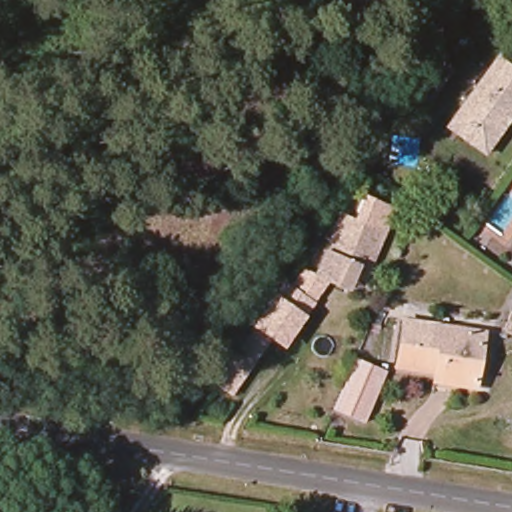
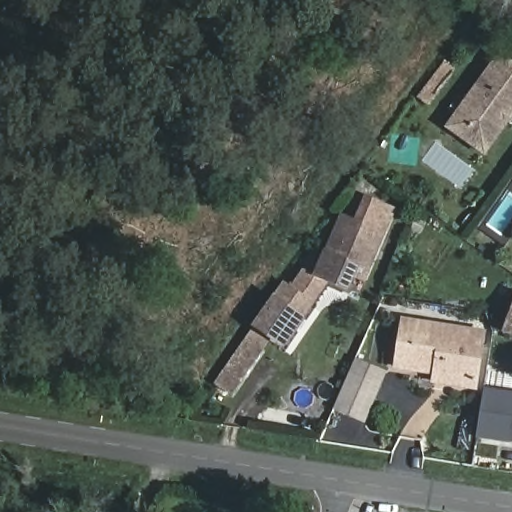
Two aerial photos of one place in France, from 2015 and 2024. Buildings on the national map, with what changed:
unchanged [(450,122),(493,63),(512,77),(512,105),(483,145),(450,122)]
unchanged [(409,98),(420,84),(429,91),(419,105),(409,98)]
unchanged [(443,132),(450,122),(483,145),(512,105),(512,116),(480,160),(443,132)]
unchanged [(393,207),(380,234),(355,223),(365,194),(393,207)]
unchanged [(380,234),(364,272),(350,265),(340,286),(330,282),(312,275),(338,216),(380,234)]
unchanged [(247,329),(259,312),(272,295),(282,281),(293,265),(312,275),(330,282),(315,302),(306,316),(282,348),(272,342),(264,337),(224,394),(208,385),(247,329)]
unchanged [(512,313),(512,334),(505,331),(512,313)]
unchanged [(477,380),(461,378),(461,382),(398,372),(405,326),(483,338),(477,380)]
unchanged [(364,423),(333,408),(355,359),(387,371),(364,423)]
new [(512,397),(512,443),(476,437),(483,392),(512,397)]

